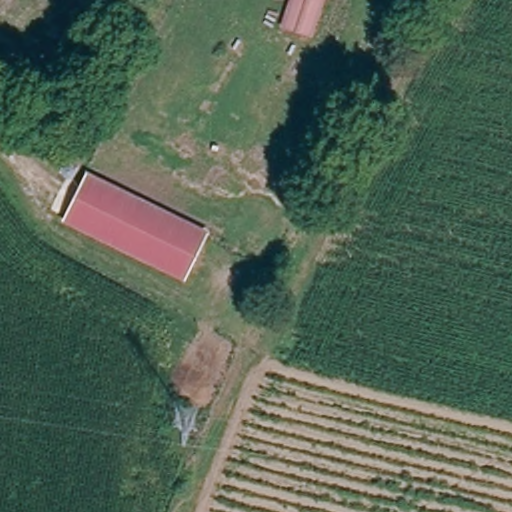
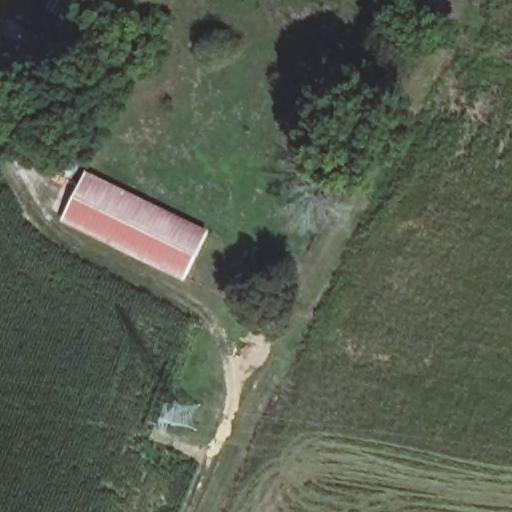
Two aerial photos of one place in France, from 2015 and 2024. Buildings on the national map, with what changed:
unchanged [(194,276),(71,221),(89,179),(212,232),(194,276)]

